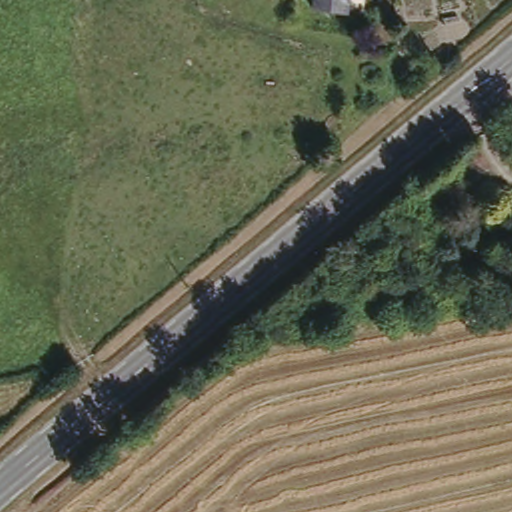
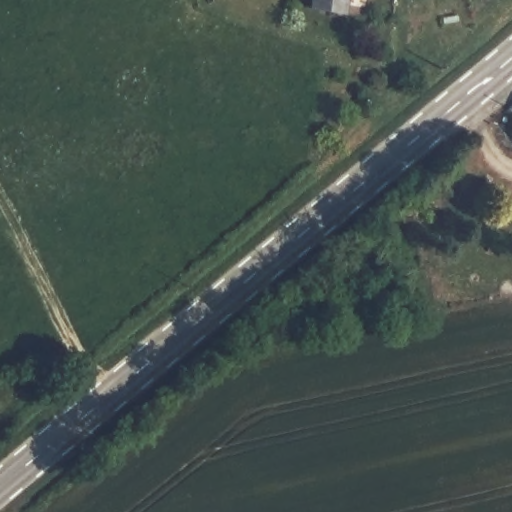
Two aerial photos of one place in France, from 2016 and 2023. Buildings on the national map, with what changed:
unchanged [(351,16),(312,14),(313,0),(353,0),(351,16)]
unchanged [(512,121),(512,128),(509,124),(512,121)]

